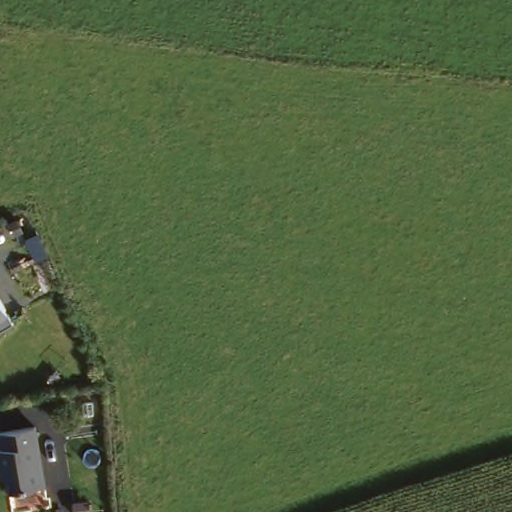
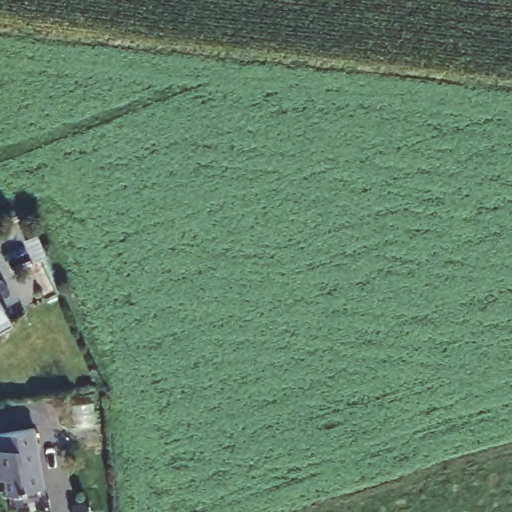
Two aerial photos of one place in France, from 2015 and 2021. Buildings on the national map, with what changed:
unchanged [(0,327),(0,313),(6,323),(0,327)]
unchanged [(3,496),(2,481),(0,481),(0,436),(28,433),(34,493),(3,496)]

